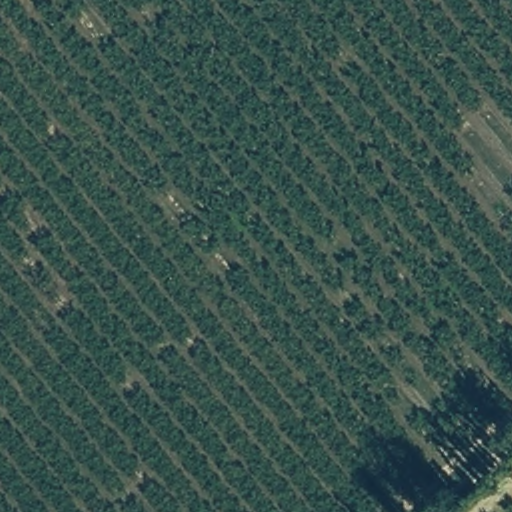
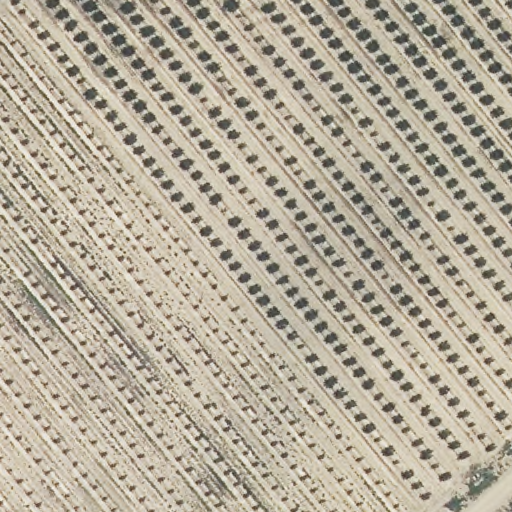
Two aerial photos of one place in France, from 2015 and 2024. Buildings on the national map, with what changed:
[]

